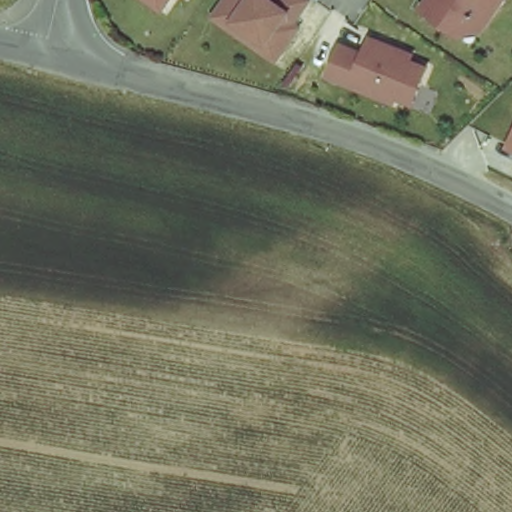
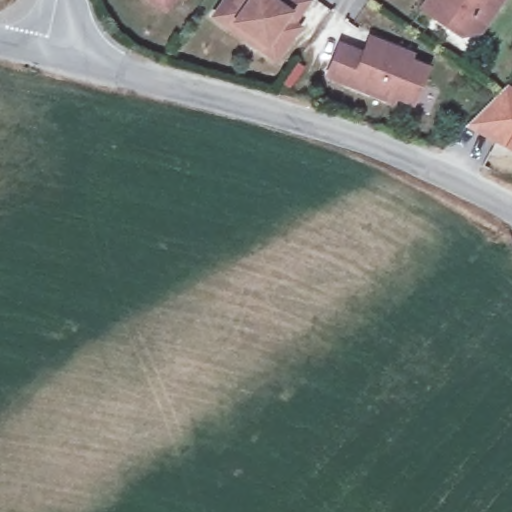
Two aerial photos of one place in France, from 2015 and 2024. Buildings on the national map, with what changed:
unchanged [(151,0),(165,0),(161,6),(151,0)]
unchanged [(214,0),(297,0),(265,46),(261,54),(221,26),(204,14),(214,0)]
unchanged [(460,30),(421,3),(423,0),(500,0),(484,23),(479,29),(467,20),(460,30)]
unchanged [(403,49),(400,55),(427,66),(413,101),(397,95),(394,100),(328,74),(339,43),(364,52),(370,36),(403,49)]
new [(504,142),(500,150),(468,132),(509,88),(512,89),(512,128),(504,142)]
unchanged [(504,142),(512,128),(512,146),(504,142)]

